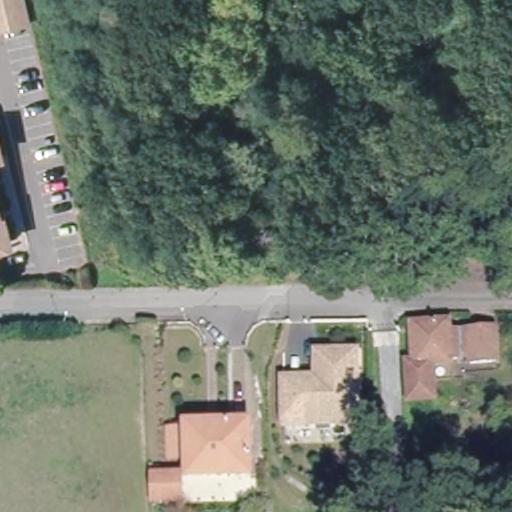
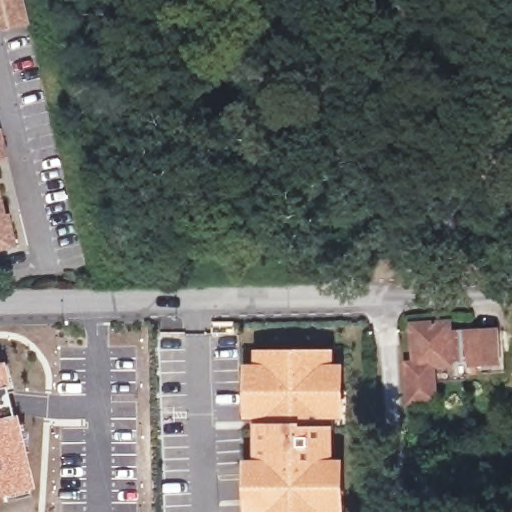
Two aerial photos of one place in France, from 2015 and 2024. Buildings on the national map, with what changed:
unchanged [(0,18),(0,0),(26,0),(31,19),(2,26),(0,18)]
unchanged [(0,152),(0,134),(4,150),(0,152)]
unchanged [(13,234),(0,237),(0,200),(3,212),(7,210),(13,234)]
unchanged [(473,359),(452,359),(452,364),(433,365),(434,401),(410,401),(408,367),(416,367),(416,329),(449,328),(449,335),(498,334),(499,364),(473,364),(473,359)]
new [(336,349),(336,364),(346,363),(347,419),(335,419),(335,425),(335,459),(346,459),(346,512),(246,512),(244,459),(254,459),(255,424),(255,418),(246,418),(245,364),(255,363),(256,348),(336,349)]
demolished [(321,378),(320,353),(360,349),(364,421),(291,425),(288,380),(309,379),(310,399),(323,398),(321,378)]
new [(2,387),(10,417),(15,416),(32,487),(0,494),(0,362),(8,385),(2,387)]
demolished [(189,476),(189,427),(250,427),(250,477),(189,476)]
demolished [(183,481),(184,504),(152,505),(152,472),(182,472),(183,481)]

